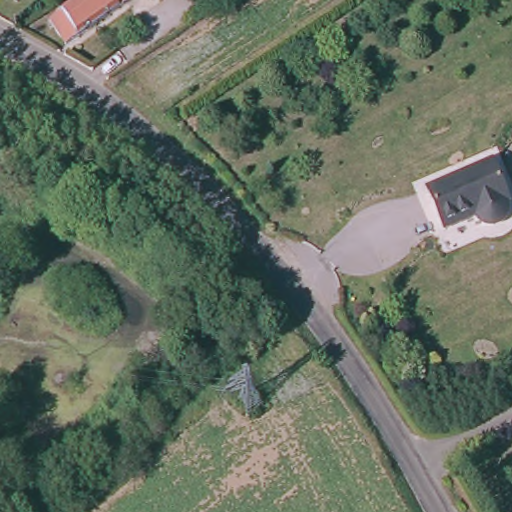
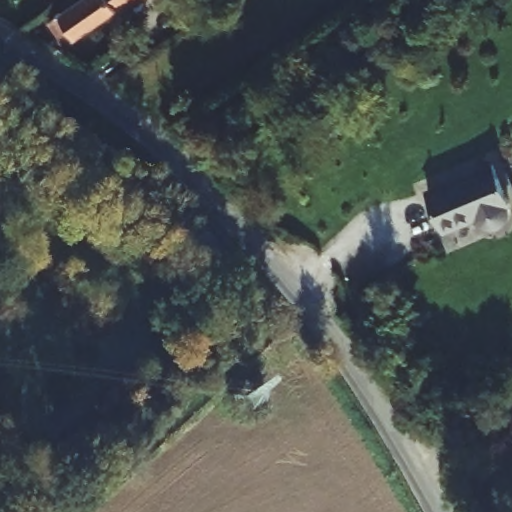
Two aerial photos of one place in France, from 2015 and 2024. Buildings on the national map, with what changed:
unchanged [(124,0),(64,42),(49,23),(80,0),(124,0)]
unchanged [(495,162),(512,202),(509,203),(510,204),(510,205),(510,206),(510,207),(511,209),(511,210),(510,211),(510,212),(510,213),(510,214),(509,215),(509,217),(508,219),(507,220),(507,221),(506,221),(505,222),(504,222),(503,224),(502,224),(501,225),(500,225),(499,226),(498,226),(496,226),(495,226),(494,226),(493,226),(492,226),(491,226),(489,226),(488,225),(487,225),(486,225),(485,224),(484,223),(483,222),(482,222),(481,221),(481,220),(480,219),(479,218),(479,217),(478,216),(446,230),(429,190),(495,162)]

